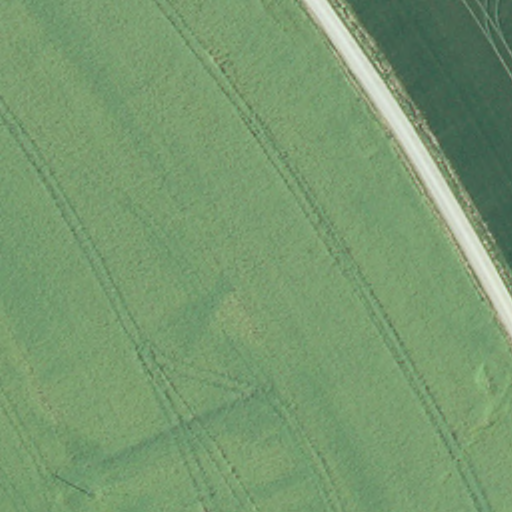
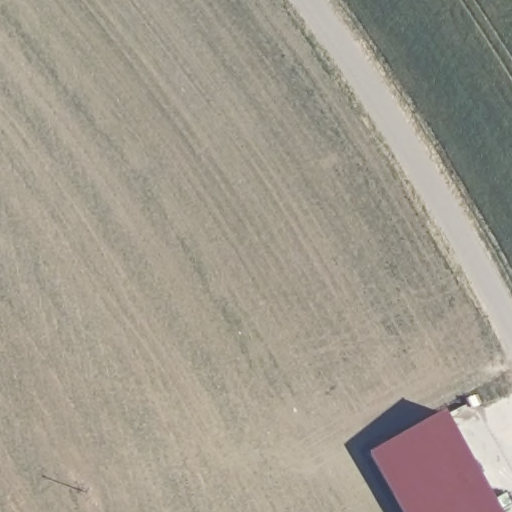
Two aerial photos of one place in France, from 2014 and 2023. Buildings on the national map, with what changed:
new [(499,512),(401,512),(368,454),(443,411),(499,512)]

